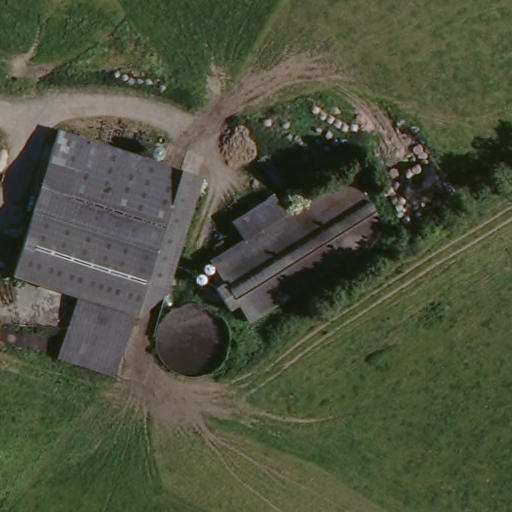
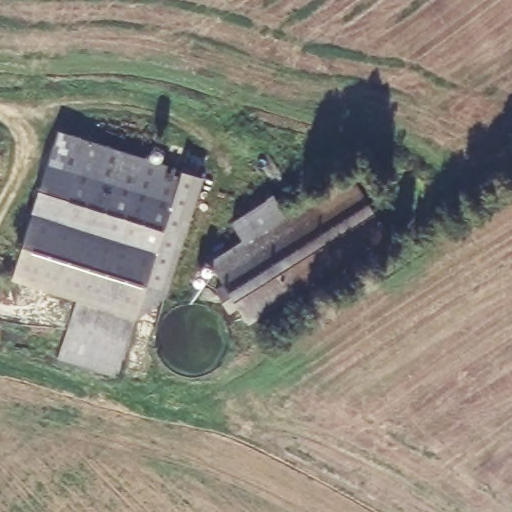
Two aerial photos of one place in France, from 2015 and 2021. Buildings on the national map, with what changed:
unchanged [(25,274),(69,132),(192,167),(183,197),(85,170),(50,282),(25,274)]
unchanged [(388,224),(253,315),(212,253),(245,231),(232,211),(276,181),(288,201),(347,161),(388,224)]
unchanged [(180,280),(147,311),(135,308),(116,380),(52,360),(74,288),(50,282),(85,170),(183,197),(192,167),(211,172),(180,280)]

